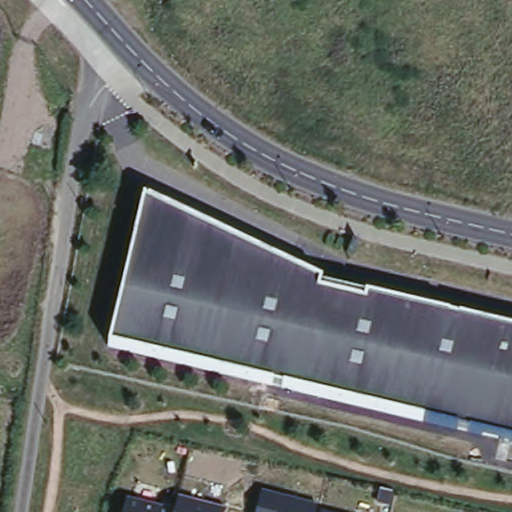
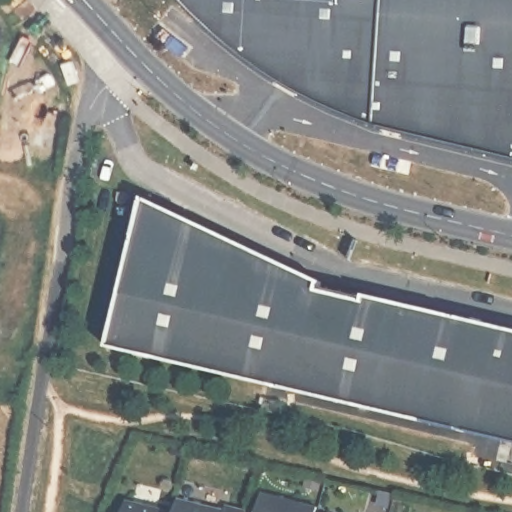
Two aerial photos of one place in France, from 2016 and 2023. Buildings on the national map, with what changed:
new [(512,167),(406,141),(363,129),(292,95),(256,73),(223,47),(176,0),(512,0),(512,167)]
unchanged [(315,284),(315,292),(359,298),(360,292),(512,322),(512,434),(107,356),(137,204),(315,284)]
unchanged [(317,506),(315,512),(256,512),(261,492),(317,506)]
unchanged [(174,511),(179,497),(226,510),(225,512),(124,512),(128,499),(174,511)]

